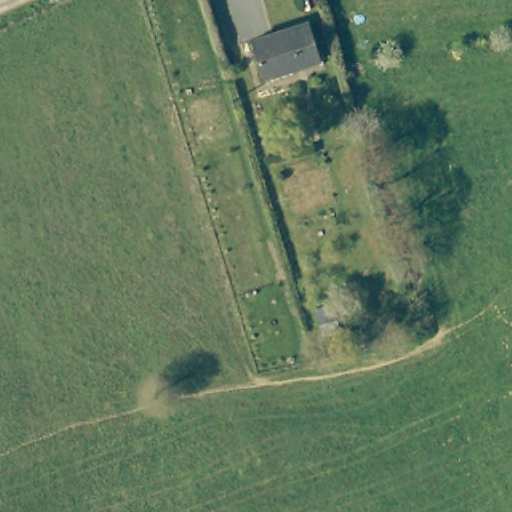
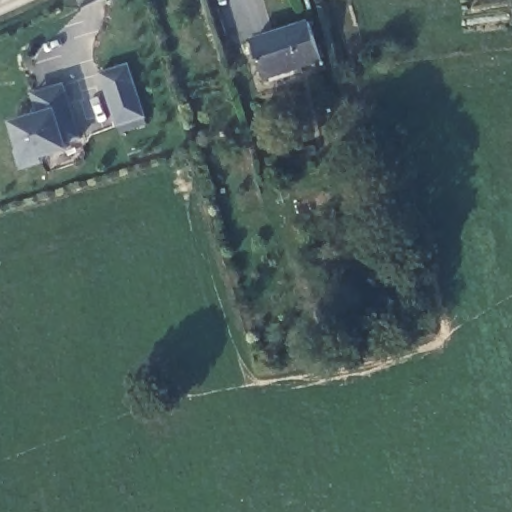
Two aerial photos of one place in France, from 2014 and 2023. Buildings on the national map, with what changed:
unchanged [(318,62),(263,79),(250,41),(306,24),(318,62)]
new [(145,118),(117,127),(99,73),(129,63),(145,118)]
new [(82,139),(67,145),(69,149),(42,158),(43,162),(21,169),(15,152),(19,151),(10,122),(39,113),(30,93),(65,83),(82,139)]

